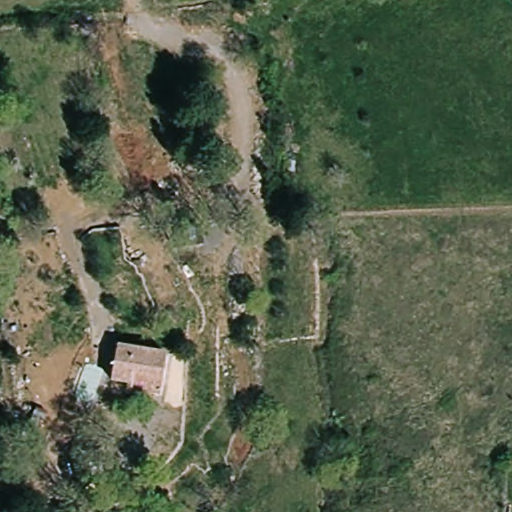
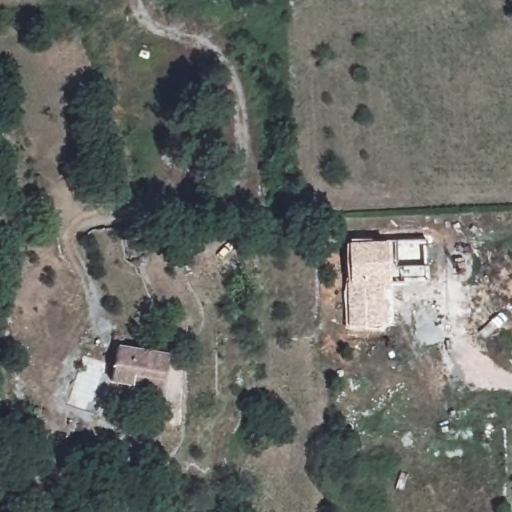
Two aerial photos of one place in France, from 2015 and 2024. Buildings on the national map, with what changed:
new [(350,286),(348,244),(387,243),(427,240),(429,282),(403,283),(391,284),(380,284),(382,326),(349,327),(350,286)]
unchanged [(155,395),(123,389),(124,383),(107,380),(113,347),(162,356),(155,395)]

